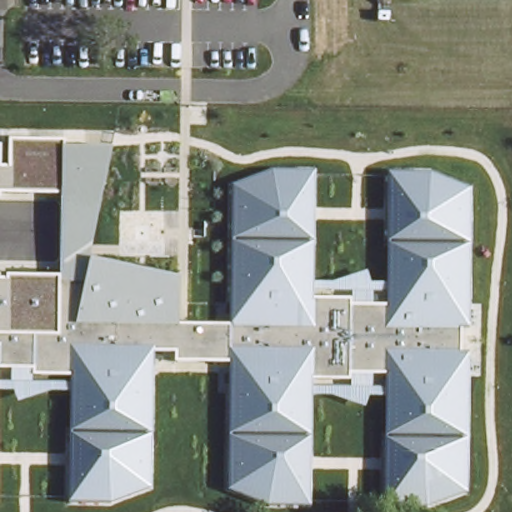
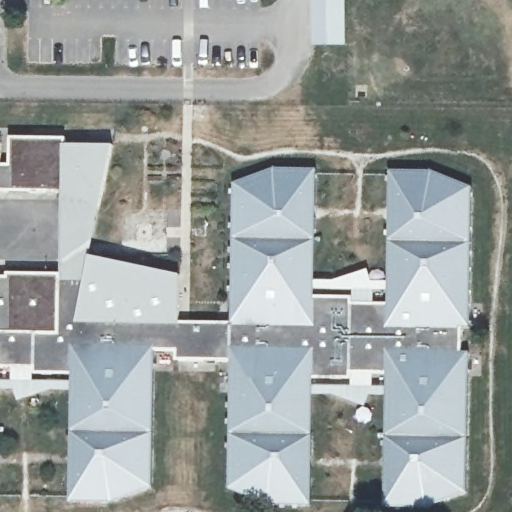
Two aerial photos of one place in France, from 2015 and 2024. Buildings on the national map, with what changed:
new [(310,45),(309,0),(345,0),(346,45),(310,45)]
unchanged [(65,134),(67,141),(112,141),(99,207),(57,199),(57,195),(0,194),(0,141),(7,141),(7,133),(65,134)]
unchanged [(472,327),(462,328),(462,351),(472,351),(468,493),(427,508),(384,507),(387,372),(352,372),(352,377),(315,377),(312,506),(271,505),(230,489),(230,360),(178,360),(178,349),(155,349),(153,487),(112,501),(67,500),(71,373),(35,373),(35,367),(1,367),(0,411),(0,272),(62,272),(62,278),(83,278),(87,255),(180,275),(182,323),(233,323),(236,185),(275,170),(318,170),(317,296),(353,297),(353,303),(388,303),(392,171),(434,173),(473,188),(472,327)]

